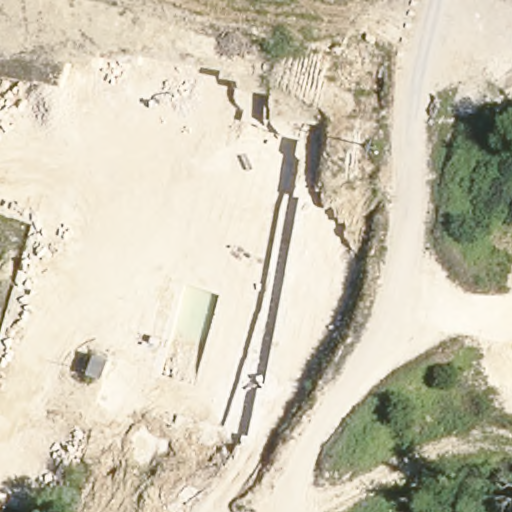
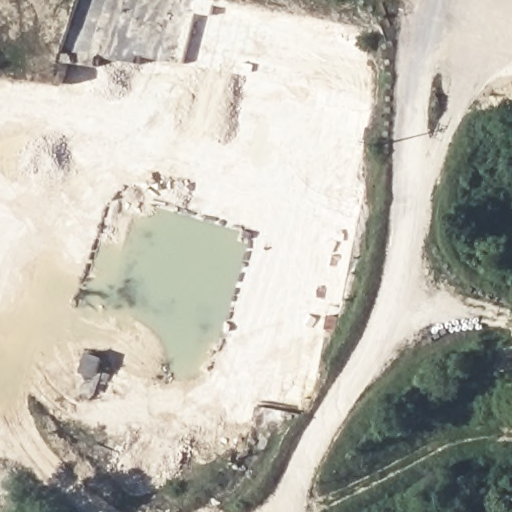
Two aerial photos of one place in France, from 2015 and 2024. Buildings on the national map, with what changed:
[]

